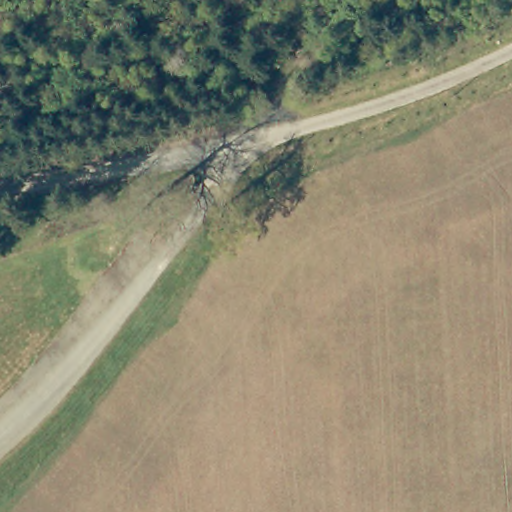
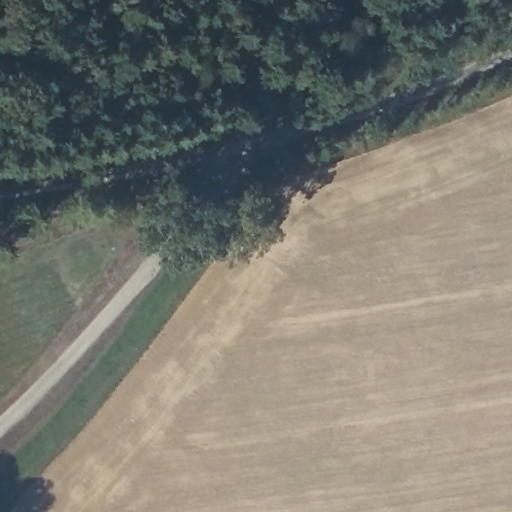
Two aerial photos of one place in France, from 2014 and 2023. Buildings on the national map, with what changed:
[]

